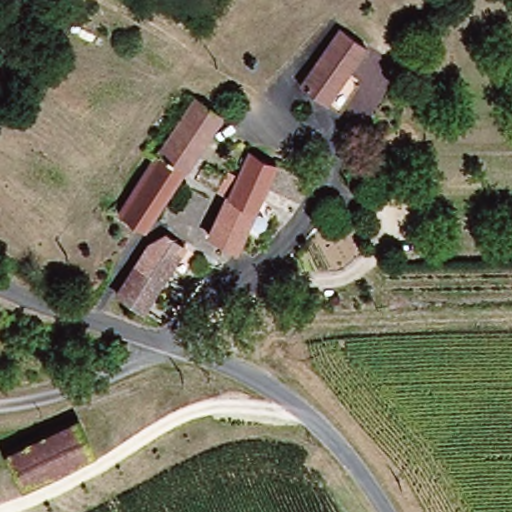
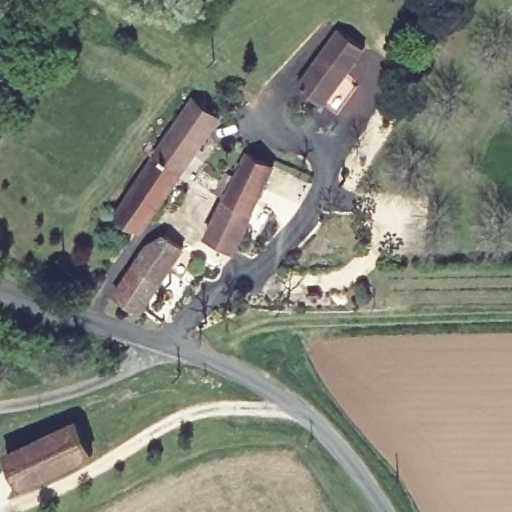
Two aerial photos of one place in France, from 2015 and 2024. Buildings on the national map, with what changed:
unchanged [(326,102),(303,85),(345,29),(368,45),(326,102)]
unchanged [(166,196),(145,228),(117,209),(196,95),(221,112),(178,178),(190,186),(178,204),(166,196)]
unchanged [(277,168),(238,252),(213,240),(233,199),(221,194),(232,171),(243,177),(253,156),(277,168)]
unchanged [(171,231),(188,247),(142,303),(118,285),(156,235),(171,231)]
unchanged [(74,419),(89,450),(22,483),(6,451),(74,419)]

